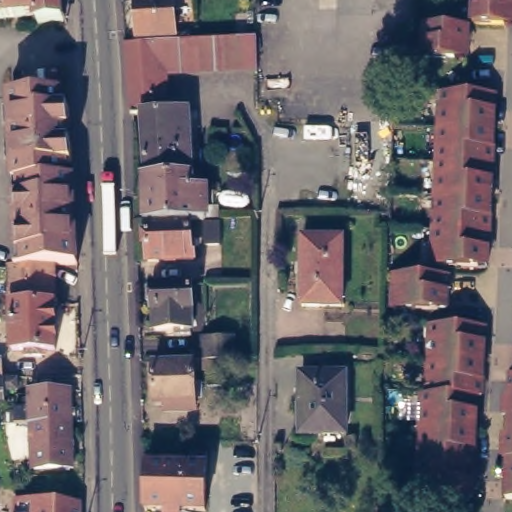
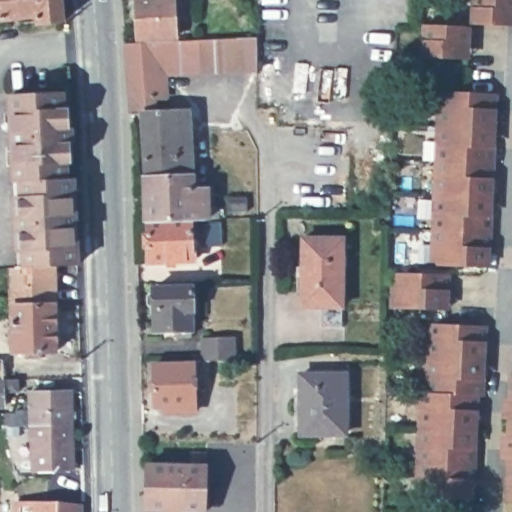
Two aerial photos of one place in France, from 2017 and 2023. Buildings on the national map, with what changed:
unchanged [(38,19),(38,11),(0,15),(0,0),(62,0),(63,16),(38,19)]
unchanged [(136,0),(173,0),(174,6),(189,5),(190,18),(175,20),(176,37),(138,39),(136,0)]
unchanged [(473,19),(474,0),(512,0),(512,21),(504,20),(473,19)]
unchanged [(454,53),(424,52),(424,20),(468,22),(467,39),(466,54),(454,53)]
unchanged [(257,38),(256,69),(182,72),(181,41),(257,38)]
unchanged [(181,41),(182,72),(165,73),(166,80),(163,81),(163,98),(154,98),(155,112),(143,113),(131,113),(125,43),(181,41)]
unchanged [(478,262),(432,260),(439,87),(494,89),(494,106),(493,142),(491,175),(489,211),(488,244),(487,262),(478,262)]
unchanged [(15,263),(5,91),(58,88),(58,104),(64,104),(67,158),(61,158),(61,174),(68,174),(72,260),(48,261),(48,262),(15,263)]
unchanged [(144,152),(143,113),(155,112),(189,111),(191,151),(144,152)]
unchanged [(207,245),(206,221),(191,221),(146,221),(144,152),(191,151),(193,188),(206,188),(206,208),(219,207),(220,219),(220,245),(207,245)]
unchanged [(191,221),(191,247),(193,246),(194,261),(148,262),(146,221),(191,221)]
unchanged [(302,301),(302,288),(302,272),(303,262),(303,233),(343,234),(341,302),(302,301)]
unchanged [(15,263),(48,262),(50,346),(37,347),(29,347),(21,347),(8,347),(7,264),(15,263)]
unchanged [(438,304),(391,303),(392,268),(448,270),(447,286),(446,305),(438,304)]
unchanged [(173,333),(173,326),(155,326),(153,303),(148,299),(148,291),(151,286),(153,283),(192,282),(193,306),(191,306),(191,325),(191,331),(173,333)]
unchanged [(468,499),(422,497),(426,393),(431,393),(434,324),(489,326),(489,343),(487,379),(486,396),(481,396),(479,430),(478,467),(478,480),(477,499),(468,499)]
unchanged [(203,360),(188,361),(189,355),(203,354),(201,338),(234,337),(235,360),(203,360)]
unchanged [(3,360),(3,379),(0,380),(0,360),(3,360)]
unchanged [(194,405),(154,405),(153,365),(193,365),(194,405)]
unchanged [(511,373),(512,373),(512,495),(506,495),(511,373)]
unchanged [(350,374),(351,434),(306,434),(306,375),(350,374)]
unchanged [(3,379),(18,380),(18,391),(4,392),(3,406),(0,407),(0,380),(3,379)]
unchanged [(3,415),(15,414),(15,413),(15,410),(17,410),(19,410),(24,410),(24,402),(30,402),(30,399),(30,392),(64,392),(71,391),(72,423),(31,425),(16,426),(8,426),(4,426),(3,418),(3,415)]
unchanged [(17,450),(33,447),(31,425),(72,423),(73,469),(34,470),(18,471),(17,450)]
unchanged [(191,471),(191,458),(207,458),(206,471),(206,512),(144,512),(144,470),(191,471)]
unchanged [(233,479),(239,477),(238,467),(258,466),(258,512),(234,512),(233,479)]
unchanged [(81,512),(17,512),(18,498),(81,501),(81,512)]

